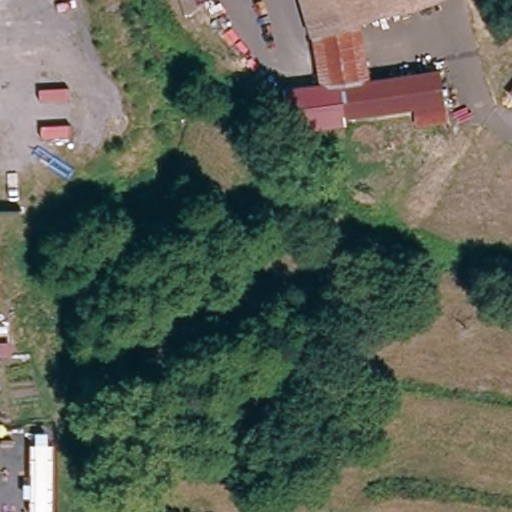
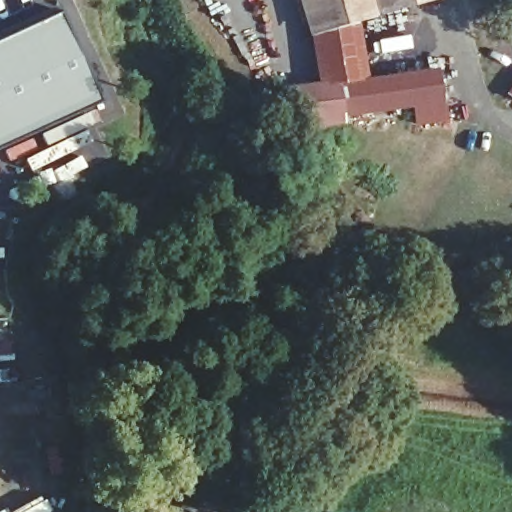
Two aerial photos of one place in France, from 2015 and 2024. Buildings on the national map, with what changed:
unchanged [(358,19),(313,32),(304,0),(424,0),(358,19)]
new [(58,14),(100,102),(30,134),(36,148),(8,162),(2,147),(0,148),(0,39),(58,14)]
unchanged [(358,19),(368,80),(440,71),(446,120),(418,124),(416,105),(346,115),(341,81),(322,85),(313,32),(358,19)]
unchanged [(348,123),(293,132),(285,91),(322,85),(341,81),(346,115),(348,123)]
unchanged [(512,92),(512,94),(511,93),(512,92)]

